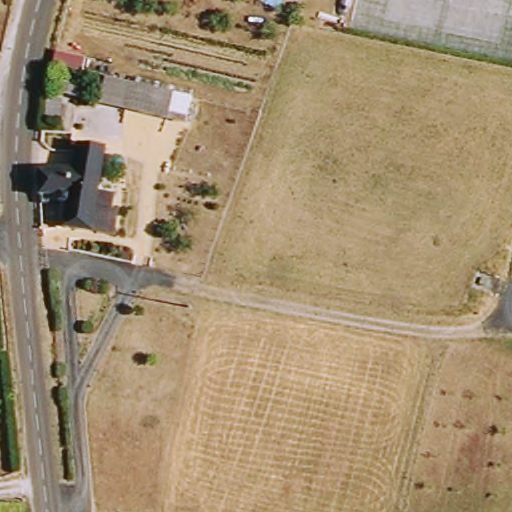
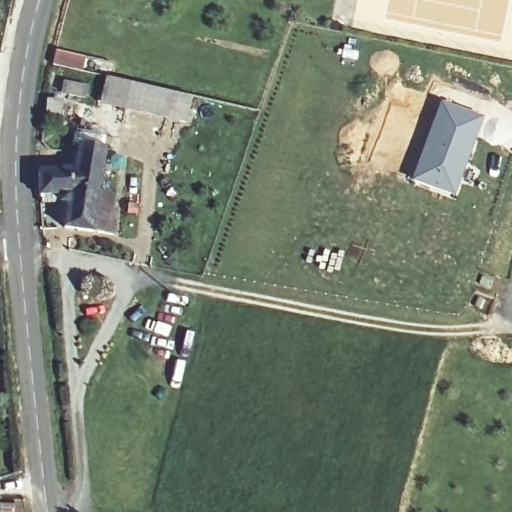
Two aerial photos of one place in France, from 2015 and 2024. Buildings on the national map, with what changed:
unchanged [(110,80),(196,100),(194,120),(171,116),(170,125),(127,116),(126,109),(106,105),(110,80)]
new [(455,197),(411,181),(439,102),(483,119),(455,197)]
unchanged [(108,206),(107,216),(115,219),(110,238),(95,236),(92,232),(53,224),(56,197),(41,194),(40,167),(85,172),(87,155),(88,147),(108,150),(109,162),(100,204),(108,206)]

